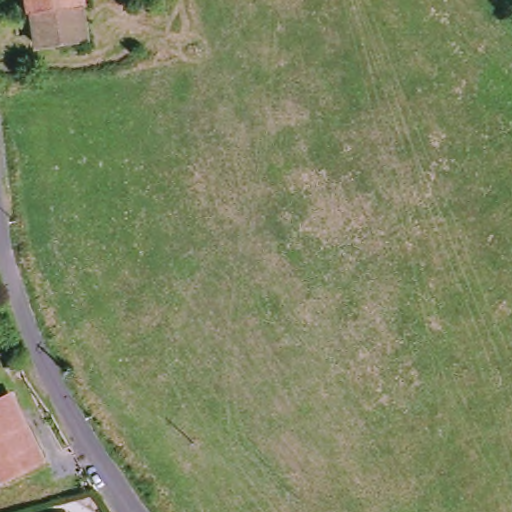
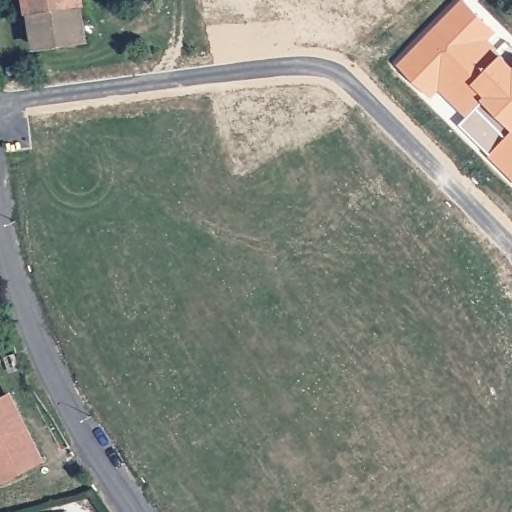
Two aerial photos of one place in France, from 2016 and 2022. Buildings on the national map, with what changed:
unchanged [(43,47),(36,0),(86,0),(92,39),(43,47)]
new [(492,32),(486,40),(510,69),(512,68),(512,181),(457,127),(463,118),(437,92),(430,97),(394,67),(457,1),(492,32)]
unchanged [(42,464),(3,484),(0,478),(0,406),(8,402),(42,464)]

